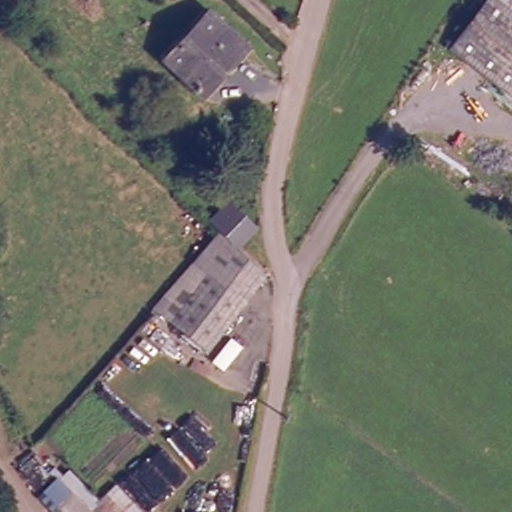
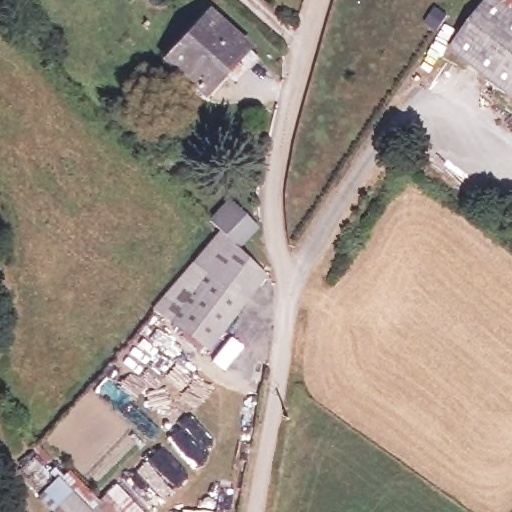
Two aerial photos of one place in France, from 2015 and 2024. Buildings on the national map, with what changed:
unchanged [(487,0),(512,0),(512,101),(450,50),(487,0)]
unchanged [(207,92),(169,59),(211,9),(250,44),(207,92)]
unchanged [(236,204),(260,229),(242,253),(222,234),(216,225),(236,204)]
unchanged [(207,351),(179,325),(216,280),(197,262),(222,234),(242,253),(273,278),(207,351)]
unchanged [(159,308),(197,262),(216,280),(179,325),(159,308)]
unchanged [(100,499),(116,484),(144,512),(52,512),(37,498),(55,481),(47,473),(55,466),(64,475),(69,468),(100,499)]

